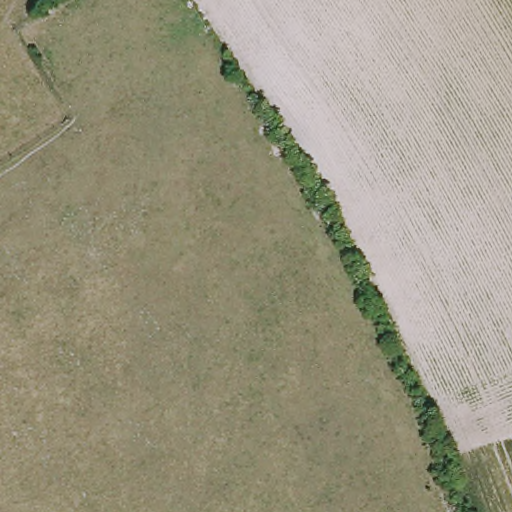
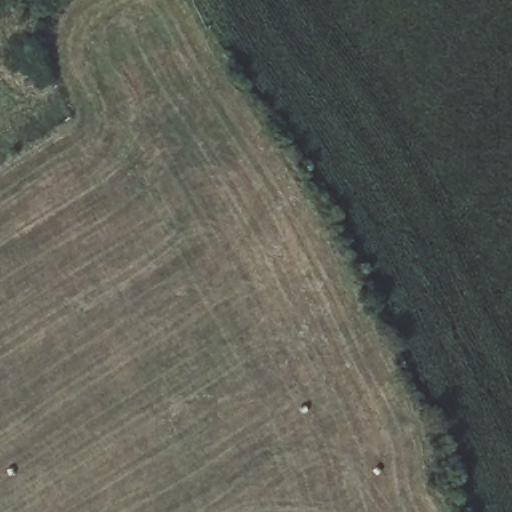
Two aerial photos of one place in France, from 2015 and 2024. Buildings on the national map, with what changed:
unchanged [(424,488),(442,477),(458,512),(436,512),(424,488)]

